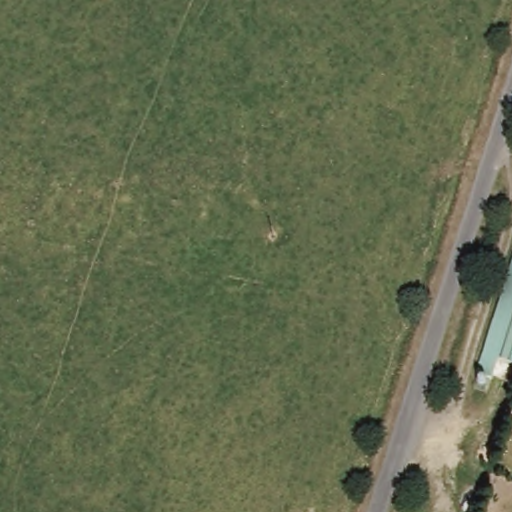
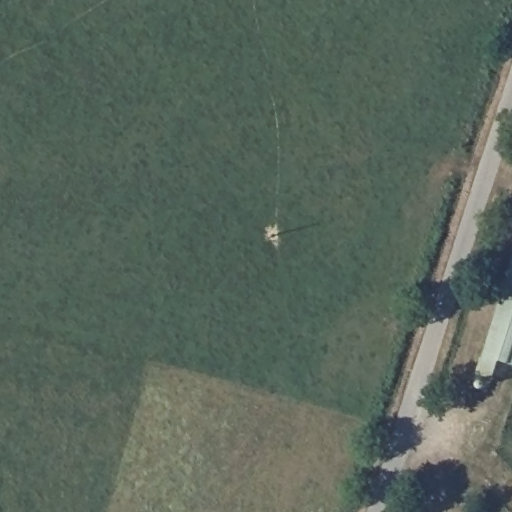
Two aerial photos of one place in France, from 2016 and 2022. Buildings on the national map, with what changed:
unchanged [(488,405),(471,399),(512,279),(512,390),(494,385),(488,405)]

